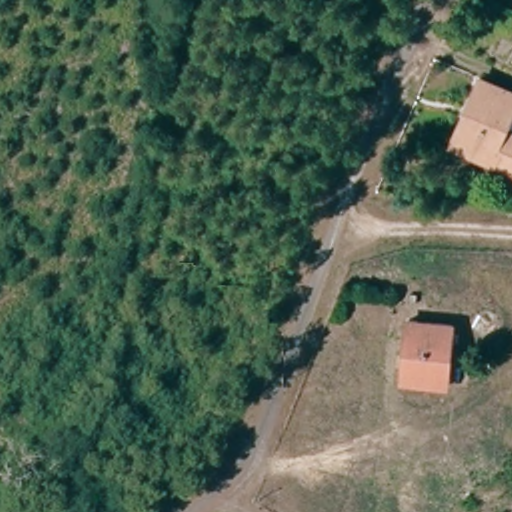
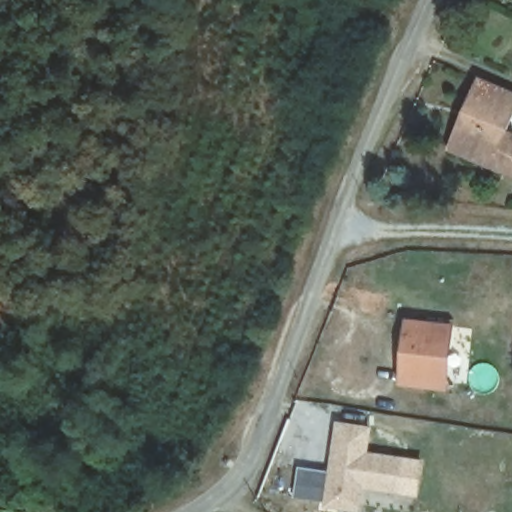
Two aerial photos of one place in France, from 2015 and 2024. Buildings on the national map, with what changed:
unchanged [(464,115),(478,83),(512,98),(512,106),(501,131),(512,136),(512,178),(490,169),(449,151),(464,115)]
unchanged [(446,388),(402,383),(408,322),(452,327),(446,388)]
new [(330,472),(338,421),(374,426),(370,451),(406,456),(401,493),(364,487),(361,511),(324,506),(324,502),(295,498),(299,468),(330,472)]

